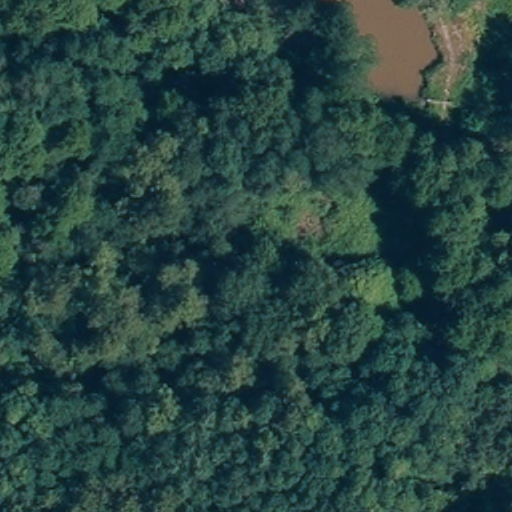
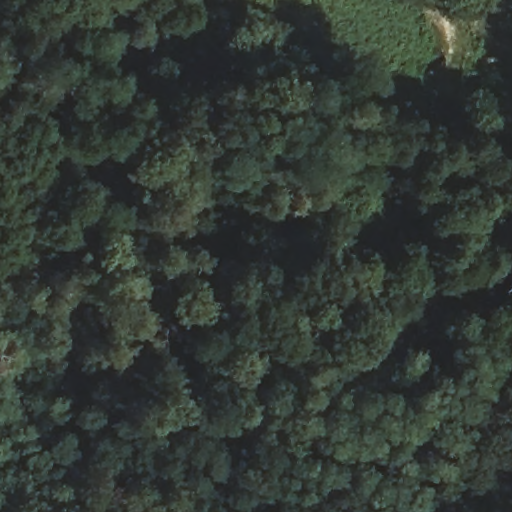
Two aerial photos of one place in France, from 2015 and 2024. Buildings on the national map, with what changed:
unchanged [(376,333),(351,323),(376,262),(397,272),(376,333)]

